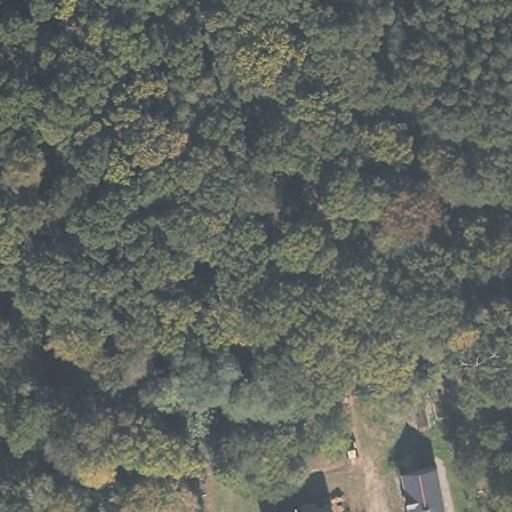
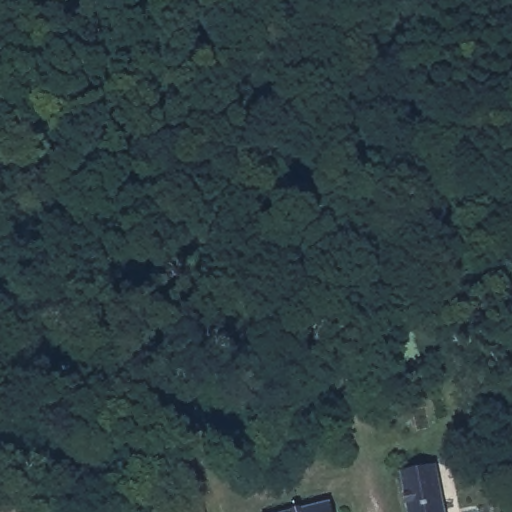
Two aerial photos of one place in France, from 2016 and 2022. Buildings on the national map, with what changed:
unchanged [(174,512),(161,445),(186,440),(201,512),(174,512)]
unchanged [(409,512),(401,473),(435,466),(443,512),(409,512)]
unchanged [(311,512),(328,508),(328,512),(311,512)]

